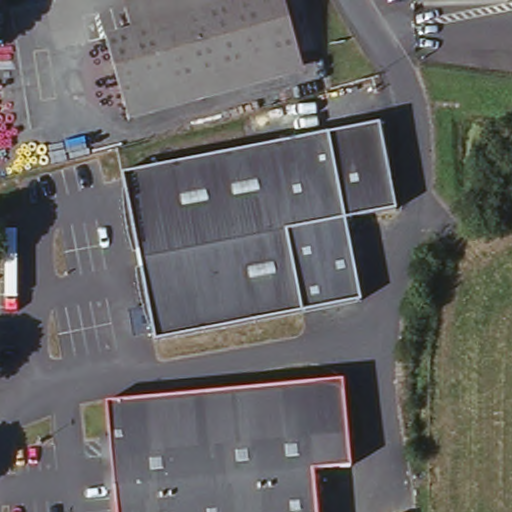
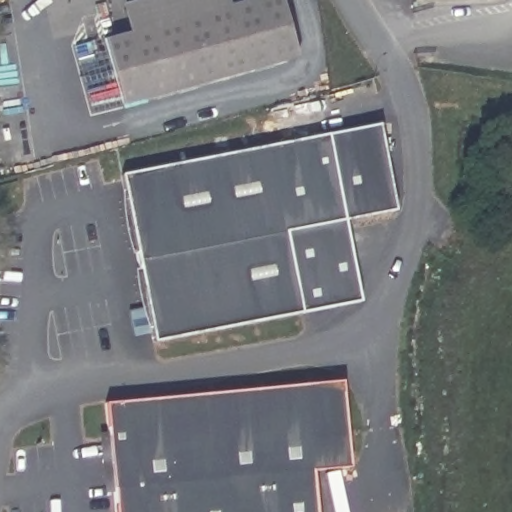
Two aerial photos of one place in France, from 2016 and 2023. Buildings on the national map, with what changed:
unchanged [(133,30),(232,1),(237,0),(283,0),(300,55),(123,105),(102,39),(133,30)]
unchanged [(127,0),(231,0),(232,1),(133,30),(124,1),(127,0)]
unchanged [(117,177),(378,124),(395,212),(286,235),(301,313),(151,346),(117,177)]
unchanged [(361,301),(301,313),(286,235),(345,222),(361,301)]
unchanged [(342,383),(349,466),(311,470),(315,512),(115,512),(103,406),(342,383)]

